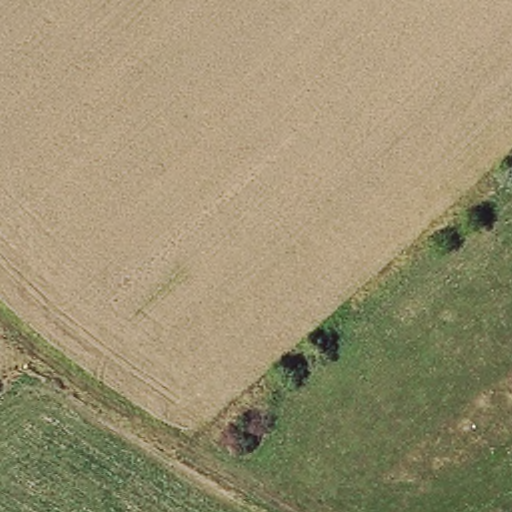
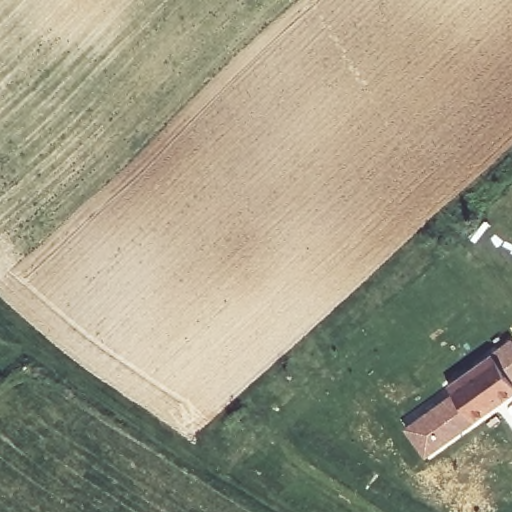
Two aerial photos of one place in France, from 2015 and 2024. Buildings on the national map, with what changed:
new [(455,395),(448,384),(510,341),(512,344),(512,383),(512,392),(481,413),(478,411),(470,416),(473,420),(440,444),(422,417),(455,395)]

